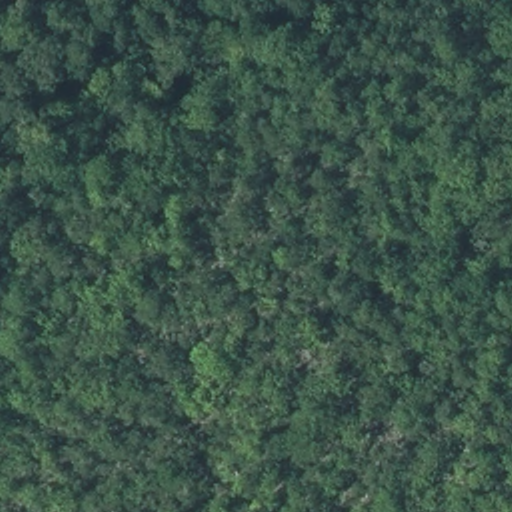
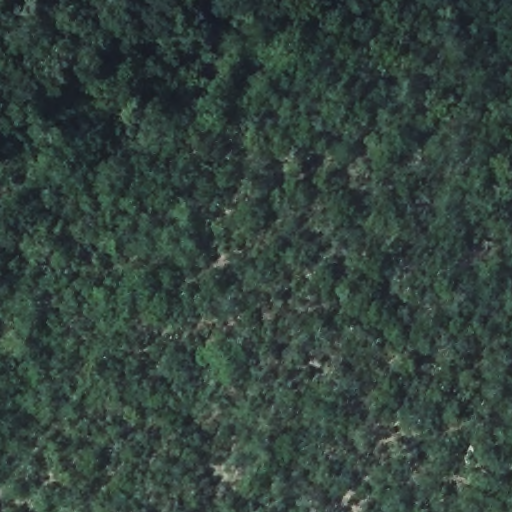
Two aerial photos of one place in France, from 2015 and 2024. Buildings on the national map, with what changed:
[]

